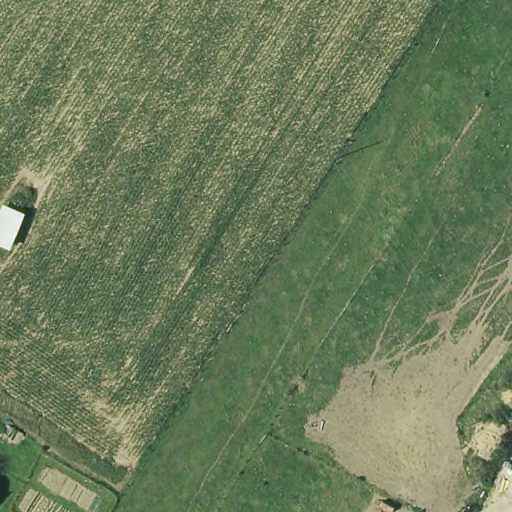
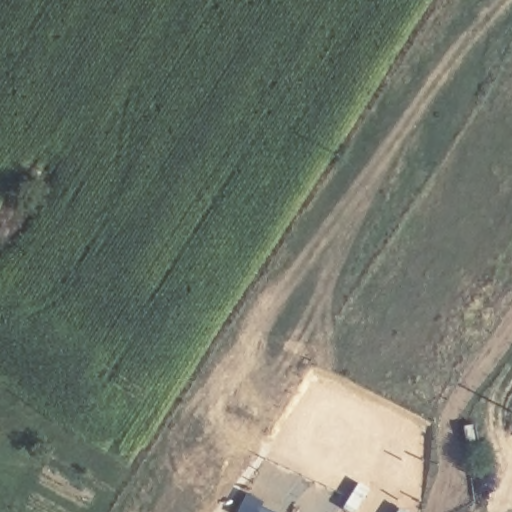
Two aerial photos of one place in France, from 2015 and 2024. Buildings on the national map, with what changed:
demolished [(0,247),(0,204),(2,200),(26,212),(12,254),(0,247)]
new [(272,512),(239,512),(245,497),(272,512)]

